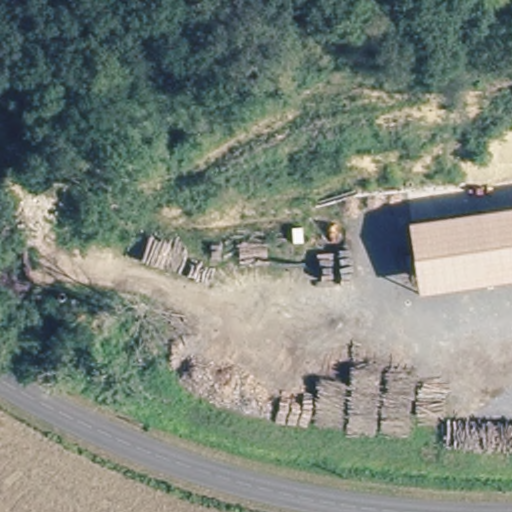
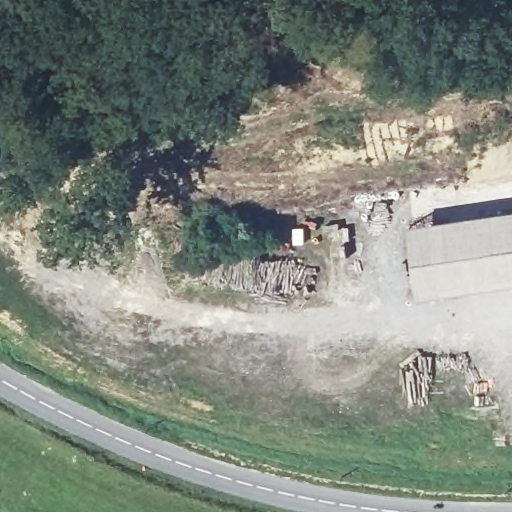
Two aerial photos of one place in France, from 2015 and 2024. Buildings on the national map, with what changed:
unchanged [(426,294),(415,225),(512,211),(512,282),(426,294)]

